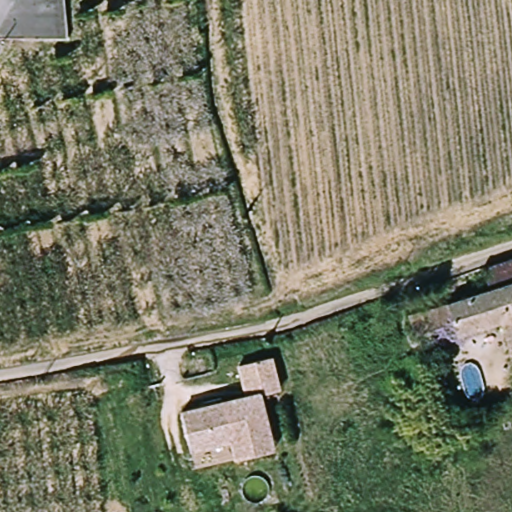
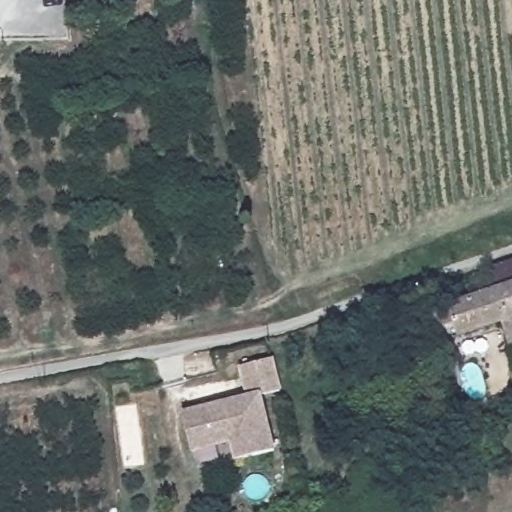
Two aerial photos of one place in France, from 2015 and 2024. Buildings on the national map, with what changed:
unchanged [(489,268),(512,260),(512,286),(496,292),(489,268)]
unchanged [(512,286),(512,320),(505,322),(460,336),(457,326),(422,337),(415,318),(496,292),(512,286)]
unchanged [(512,320),(512,344),(505,322),(512,320)]
unchanged [(262,398),(275,450),(200,468),(185,413),(253,398),(245,365),(273,359),(281,391),(262,398)]

